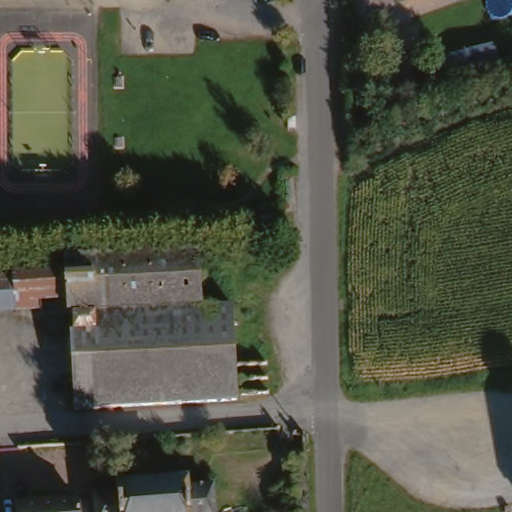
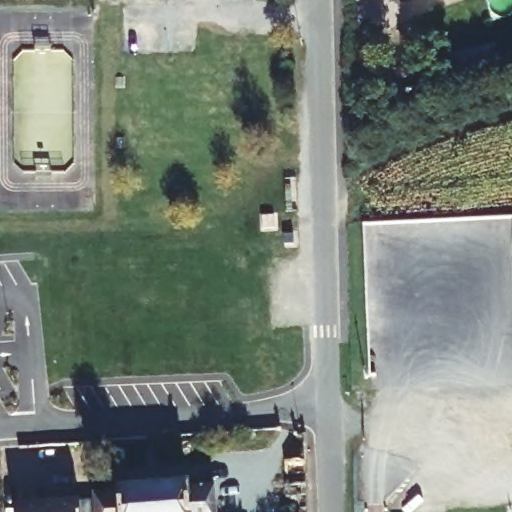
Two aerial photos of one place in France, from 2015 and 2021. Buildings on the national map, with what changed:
demolished [(203,251),(203,259),(206,306),(238,305),(238,320),(79,332),(79,313),(76,267),(75,259),(203,251)]
demolished [(239,401),(60,415),(55,333),(79,332),(238,320),(239,401)]
unchanged [(124,499),(123,492),(192,487),(192,494),(217,492),(218,512),(101,512),(100,500),(124,499)]
unchanged [(81,512),(19,512),(19,509),(80,504),(81,512)]

